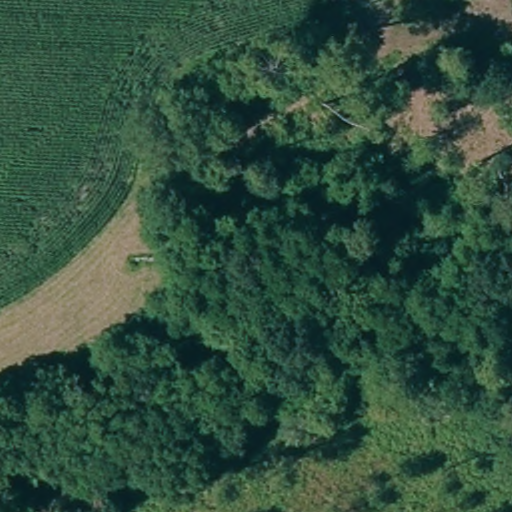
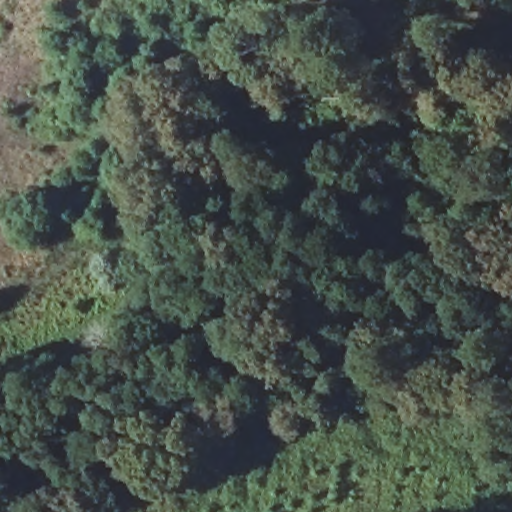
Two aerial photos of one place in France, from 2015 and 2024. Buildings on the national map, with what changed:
[]

